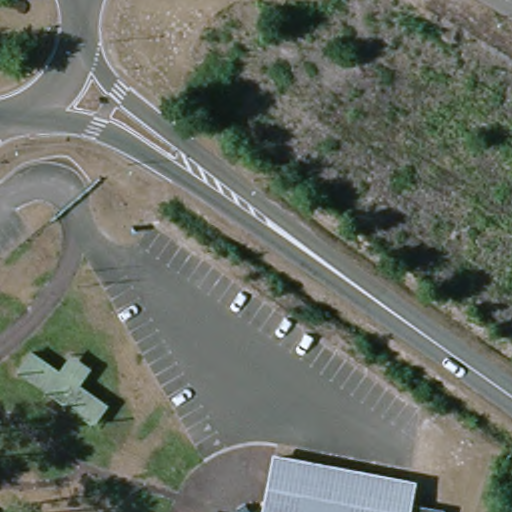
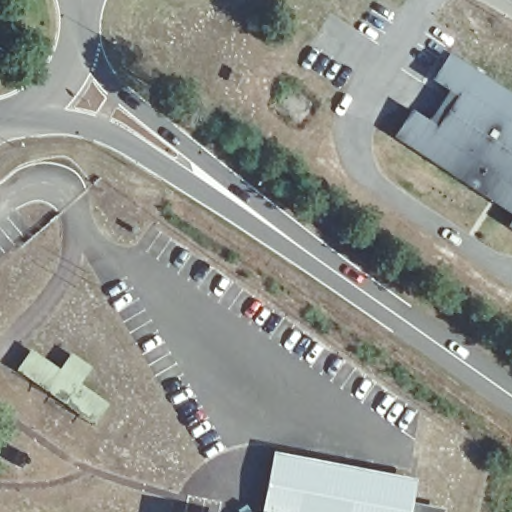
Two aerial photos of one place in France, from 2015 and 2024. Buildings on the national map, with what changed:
new [(512,93),(512,212),(394,134),(411,107),(427,119),(448,88),(432,78),(450,52),(512,93)]
new [(508,225),(512,221),(512,228),(508,225)]
unchanged [(17,371),(29,355),(56,373),(67,356),(86,369),(75,386),(102,405),(90,420),(17,371)]
unchanged [(404,503),(437,508),(436,512),(257,512),(265,456),(407,479),(404,503)]

